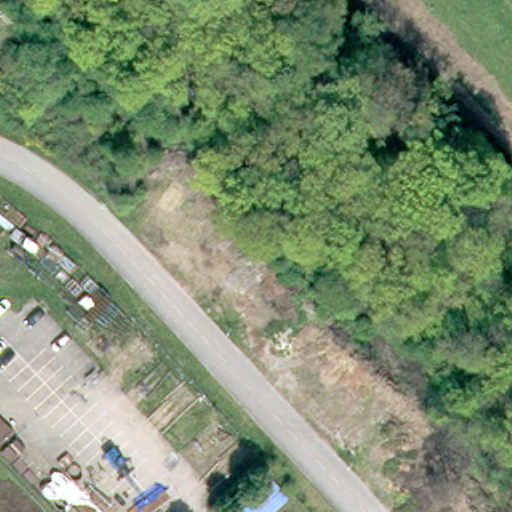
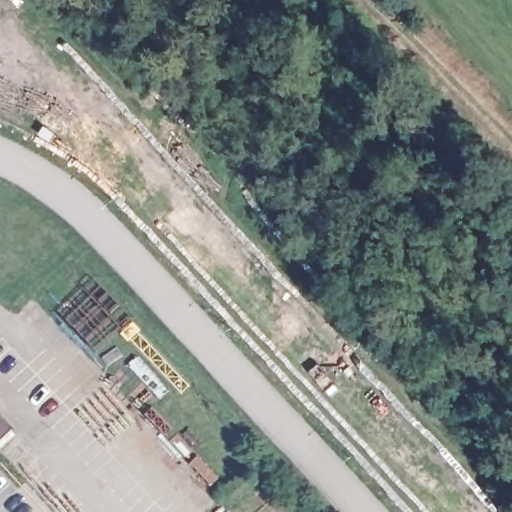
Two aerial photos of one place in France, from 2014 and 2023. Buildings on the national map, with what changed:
unchanged [(0,410),(14,426),(0,439),(0,410)]

